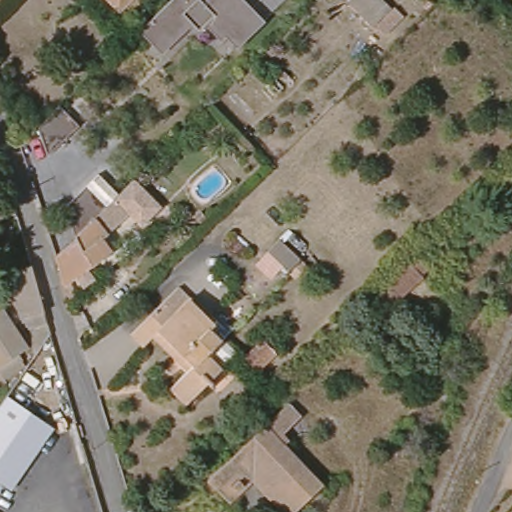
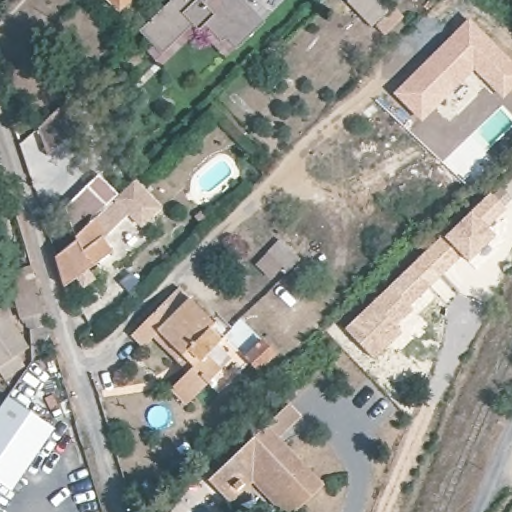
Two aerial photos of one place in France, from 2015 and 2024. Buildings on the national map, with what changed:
unchanged [(120,8),(116,12),(105,0),(144,0),(129,16),(120,8)]
unchanged [(249,0),(266,17),(240,42),(229,31),(225,36),(209,19),(202,26),(195,19),(165,49),(144,27),(170,0),(249,0)]
unchanged [(344,2),(346,0),(390,0),(412,16),(389,43),(344,2)]
new [(512,60),(512,88),(502,97),(475,69),(420,123),(393,94),(468,17),(512,60)]
unchanged [(60,100),(80,119),(48,149),(38,122),(60,100)]
unchanged [(79,239),(111,209),(124,196),(135,187),(140,182),(154,197),(167,209),(148,228),(135,216),(114,237),(110,242),(120,255),(99,269),(99,268),(94,271),(101,281),(90,289),(83,279),(70,288),(60,258),(82,241),(79,239)]
unchanged [(70,211),(90,188),(111,209),(79,239),(70,211)]
new [(492,194),(506,209),(485,228),(493,237),(468,260),(447,237),(492,194)]
unchanged [(43,306),(28,312),(20,314),(4,258),(25,251),(43,306)]
new [(421,254),(442,275),(410,306),(415,309),(395,326),(402,332),(374,359),(345,327),(421,254)]
unchanged [(219,341),(205,356),(219,371),(184,406),(168,390),(188,370),(153,335),(140,349),(128,335),(178,285),(215,322),(209,330),(219,341)]
unchanged [(0,367),(0,313),(9,308),(28,345),(15,353),(22,366),(6,376),(0,367)]
unchanged [(274,360),(260,374),(244,355),(257,342),(274,360)]
unchanged [(12,489),(0,481),(0,407),(8,396),(55,428),(12,489)]
unchanged [(315,489),(291,512),(281,512),(250,479),(223,505),(205,485),(280,412),(293,424),(274,445),(315,489)]

